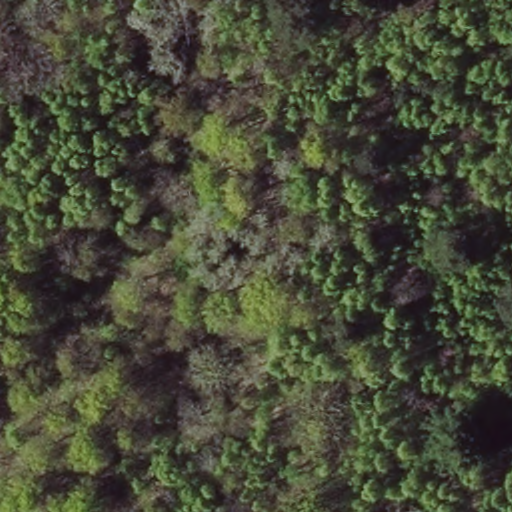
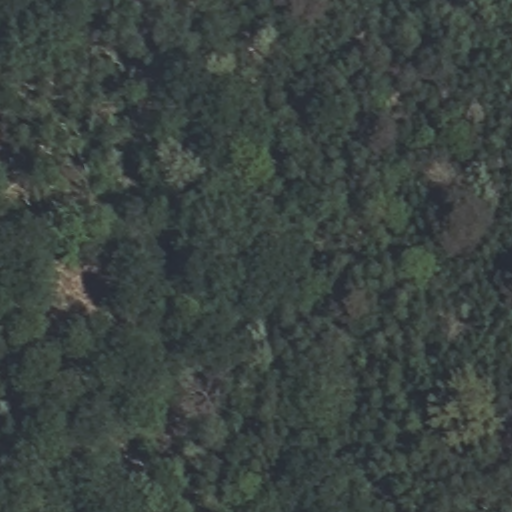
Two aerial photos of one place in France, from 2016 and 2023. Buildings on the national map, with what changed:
[]

